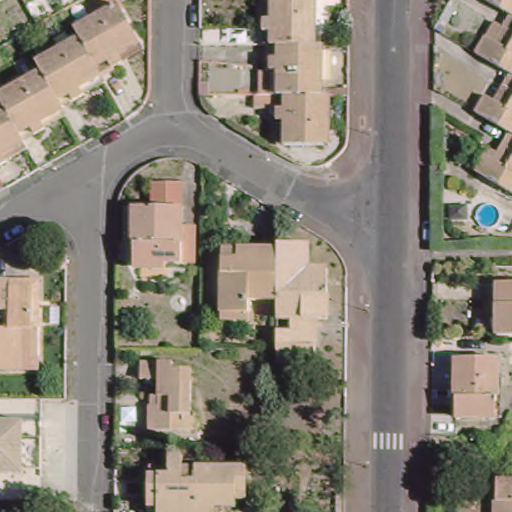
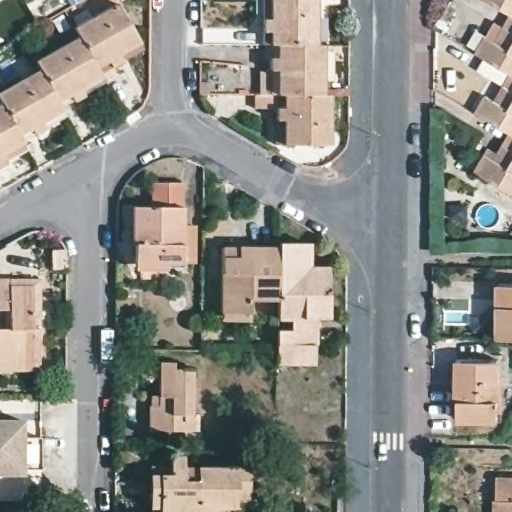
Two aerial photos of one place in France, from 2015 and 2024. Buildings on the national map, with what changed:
unchanged [(275,41),(266,41),(268,0),(317,0),(316,42),(275,41)]
unchanged [(480,0),(512,0),(512,19),(480,0)]
unchanged [(141,45),(97,69),(78,35),(74,27),(118,2),(141,45)]
unchanged [(478,58),(488,42),(496,47),(512,21),(512,77),(478,58)]
unchanged [(97,69),(103,78),(60,102),(40,69),(35,59),(78,35),(97,69)]
unchanged [(316,42),(325,42),(325,91),(282,91),(273,91),(275,41),(316,42)]
unchanged [(65,111),(21,136),(2,102),(0,97),(0,92),(40,69),(60,102),(65,111)]
unchanged [(477,116),(487,100),(495,105),(512,77),(512,136),(477,116)]
unchanged [(325,91),(332,91),(330,141),(280,140),(282,91),(325,91)]
unchanged [(21,136),(27,145),(0,160),(0,103),(2,102),(21,136)]
unchanged [(476,176),(485,160),(495,166),(512,137),(512,196),(476,176)]
unchanged [(184,273),(137,272),(138,238),(135,238),(136,218),(155,219),(157,192),(185,192),(184,273)]
unchanged [(277,301),(277,250),(277,244),(307,244),(307,268),(326,270),(325,320),(314,320),(313,363),(276,363),(276,352),(277,301)]
unchanged [(277,301),(251,301),(250,314),(225,313),(225,258),(225,250),(240,250),(277,250),(277,301)]
unchanged [(45,277),(44,327),(42,368),(0,367),(0,276),(13,277),(45,277)]
unchanged [(512,286),(512,339),(498,339),(500,286),(512,286)]
unchanged [(502,356),(501,421),(456,420),(457,356),(502,356)]
unchanged [(175,365),(193,366),(192,411),(197,411),(197,428),(149,427),(150,392),(159,392),(160,375),(143,375),(143,357),(175,358),(175,365)]
unchanged [(20,434),(40,434),(40,466),(20,465),(20,470),(0,470),(0,416),(20,417),(20,434)]
unchanged [(144,496),(144,475),(164,476),(164,468),(165,458),(178,458),(178,469),(191,469),(243,470),(243,491),(243,500),(233,500),(233,507),(228,507),(228,512),(143,512),(144,496)]
unchanged [(512,483),(512,512),(495,512),(495,483),(512,483)]

